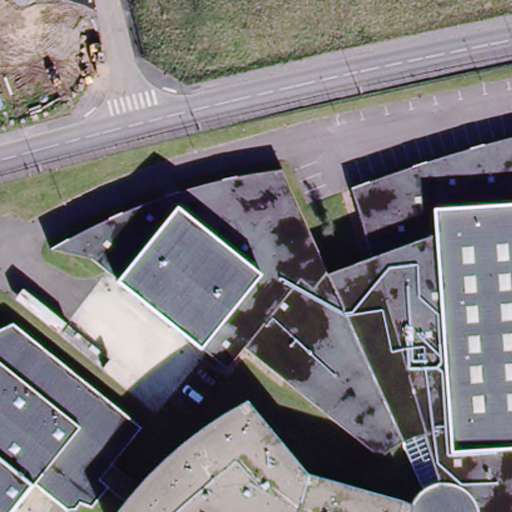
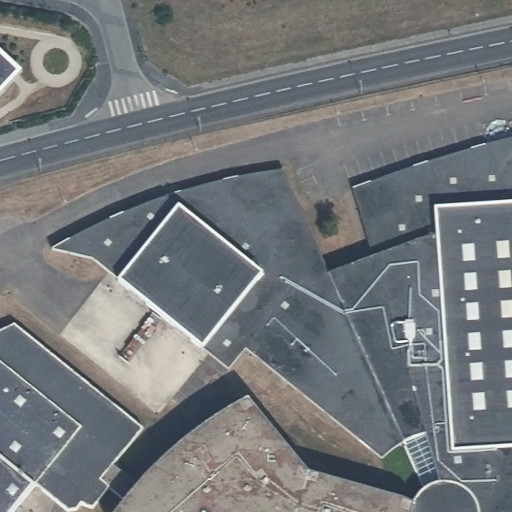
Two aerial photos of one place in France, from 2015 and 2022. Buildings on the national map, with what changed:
new [(19,72),(0,92),(0,53),(19,72)]
unchanged [(375,259),(354,190),(401,172),(449,157),(497,144),(512,141),(512,512),(414,512),(416,506),(417,504),(420,499),(425,495),(426,493),(428,492),(427,490),(402,442),(394,447),(386,453),(381,458),(250,350),(232,371),(206,350),(205,351),(120,284),(121,282),(95,261),(54,253),(76,240),(99,229),(121,218),(144,209),(168,200),(192,192),(216,185),(240,179),(262,175),(284,171),(331,275),(335,285),(377,268),(375,259)]
unchanged [(112,490),(97,510),(85,507),(80,512),(71,512),(38,485),(17,512),(0,512),(0,334),(17,325),(146,430),(116,466),(145,487),(157,474),(173,460),(195,441),(217,425),(237,412),(252,405),(311,475),(407,502),(416,506),(414,512),(125,512),(131,504),(112,490)]

